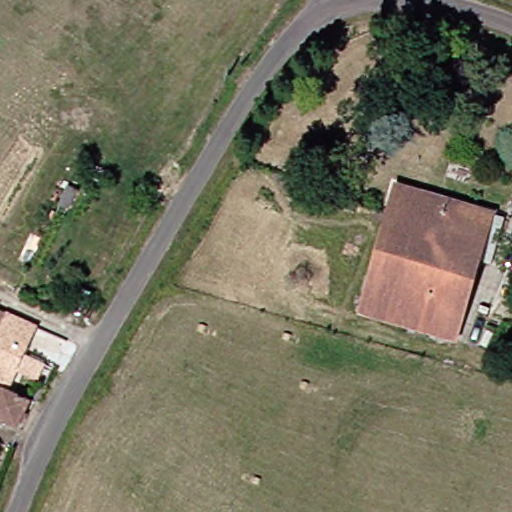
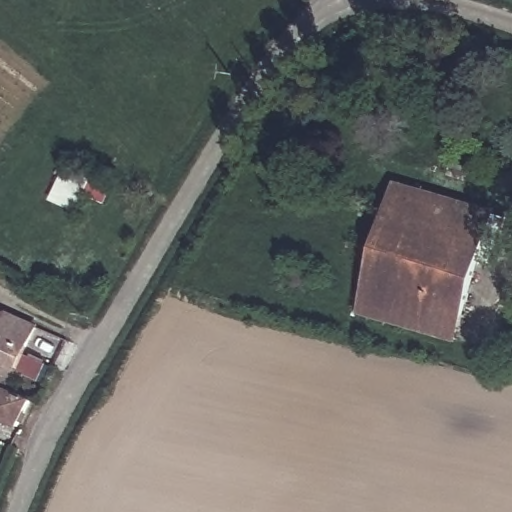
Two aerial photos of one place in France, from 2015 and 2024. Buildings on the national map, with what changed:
unchanged [(386,183),(500,213),(488,252),(477,250),(449,341),(347,314),(386,183)]
unchanged [(0,379),(0,316),(27,331),(0,379)]
unchanged [(31,403),(17,429),(0,420),(0,387),(4,389),(31,403)]

